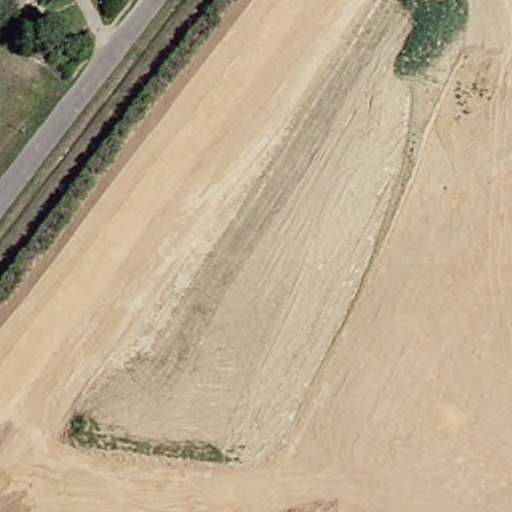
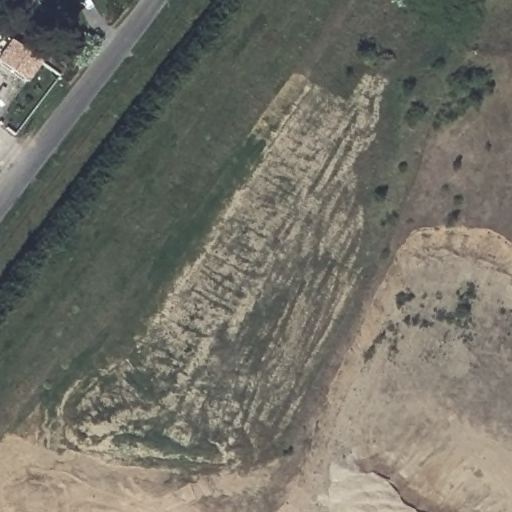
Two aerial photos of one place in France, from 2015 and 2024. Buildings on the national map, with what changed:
unchanged [(3,0),(14,0),(10,5),(3,0)]
new [(0,65),(0,53),(10,40),(40,63),(26,84),(0,65)]

